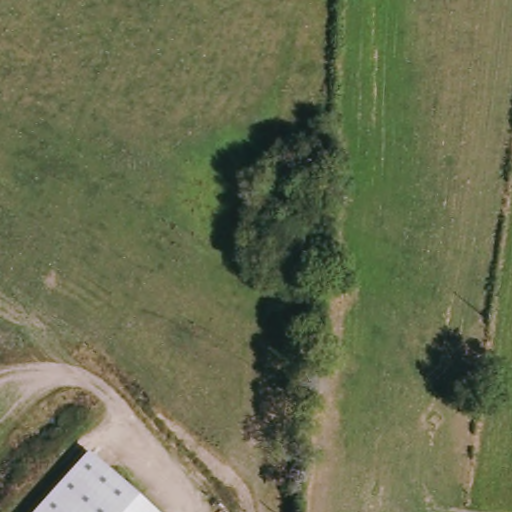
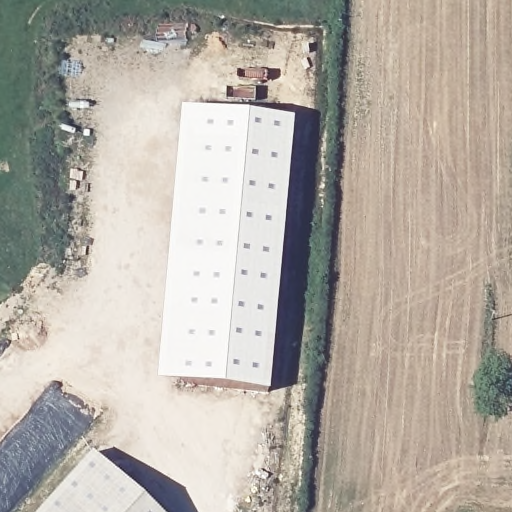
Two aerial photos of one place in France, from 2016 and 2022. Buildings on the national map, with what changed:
new [(179,110),(293,120),(269,392),(156,382),(179,110)]
unchanged [(160,512),(38,512),(90,453),(160,512)]

